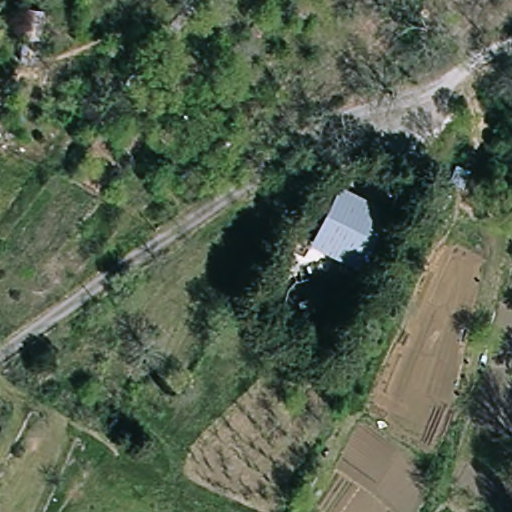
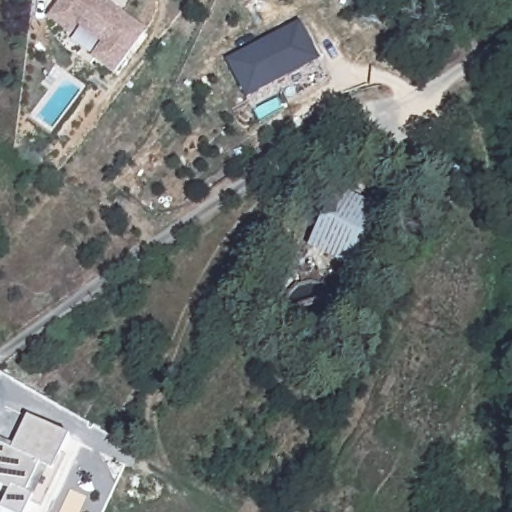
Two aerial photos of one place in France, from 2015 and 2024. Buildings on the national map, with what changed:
new [(102,44),(80,27),(72,38),(48,19),(60,0),(105,0),(148,33),(117,76),(92,58),(102,44)]
new [(300,24),(331,81),(290,101),(280,85),(247,101),(227,60),(300,24)]
unchanged [(392,219),(360,269),(318,241),(349,192),(392,219)]
new [(29,418),(70,439),(53,474),(48,472),(27,512),(3,512),(2,511),(9,493),(0,489),(0,447),(11,452),(29,418)]

